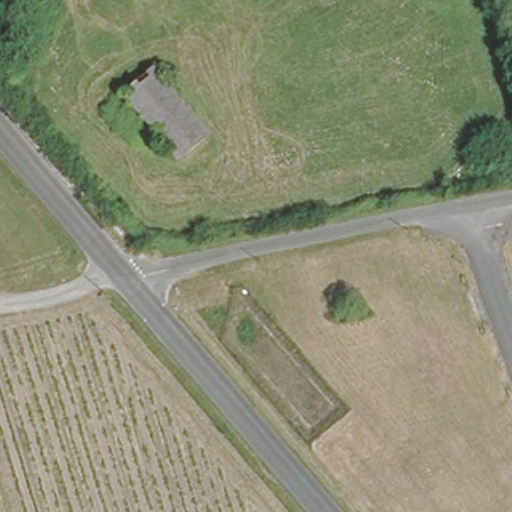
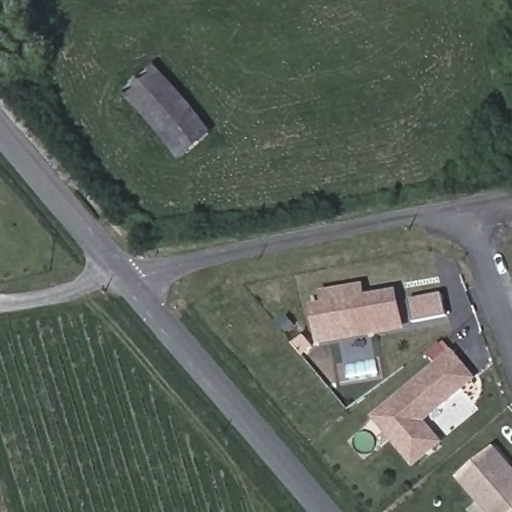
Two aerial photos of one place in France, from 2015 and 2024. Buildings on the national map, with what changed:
unchanged [(180,160),(124,94),(153,60),(214,132),(180,160)]
new [(321,304),(333,302),(331,293),(375,283),(377,292),(396,287),(405,327),(331,344),(321,304)]
new [(410,302),(441,294),(447,318),(415,325),(410,302)]
new [(453,351),(465,364),(475,376),(463,386),(424,419),(442,439),(416,462),(377,416),(453,351)]
new [(478,479),(471,486),(460,472),(493,444),(512,467),(512,512),(499,512),(488,499),(475,483),(478,479)]

